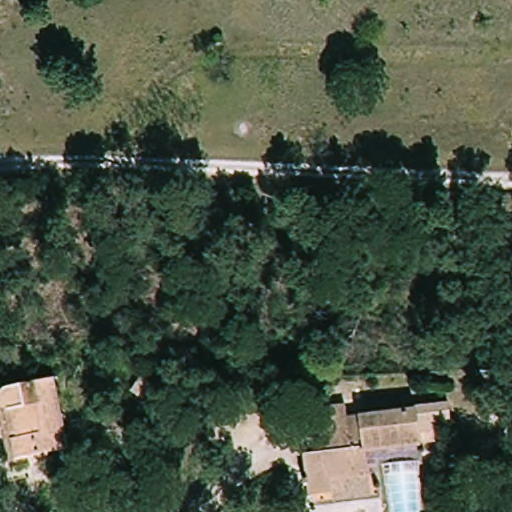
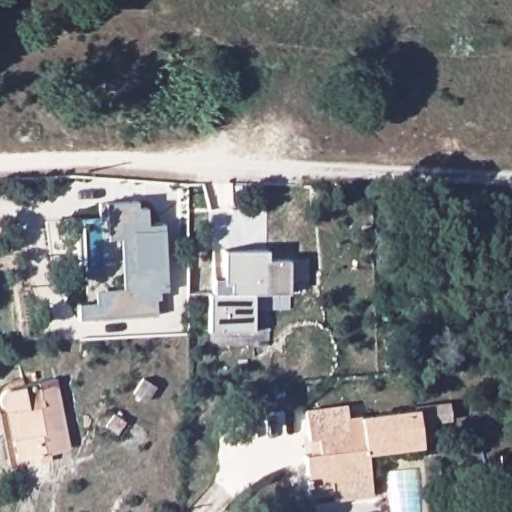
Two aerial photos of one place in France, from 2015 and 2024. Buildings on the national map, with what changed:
new [(136,202),(137,209),(147,208),(148,225),(163,224),(168,290),(160,291),(160,299),(156,301),(157,314),(78,320),(77,304),(95,302),(94,291),(123,288),(119,239),(107,239),(103,203),(136,202)]
new [(213,279),(222,278),(223,251),(268,250),(268,260),(288,260),(288,293),(253,294),(253,332),(208,332),(208,295),(212,295),(213,279)]
unchanged [(7,412),(5,411),(4,409),(2,408),(2,406),(0,404),(0,402),(0,392),(1,390),(2,388),(3,387),(5,385),(7,384),(8,383),(57,374),(75,449),(12,462),(7,444),(2,416),(12,413),(10,413),(7,412)]
unchanged [(334,495),(312,496),(308,458),(323,456),(321,440),(315,440),(312,411),(353,407),(354,420),(420,414),(423,448),(369,453),(372,478),(374,491),(334,495)]

